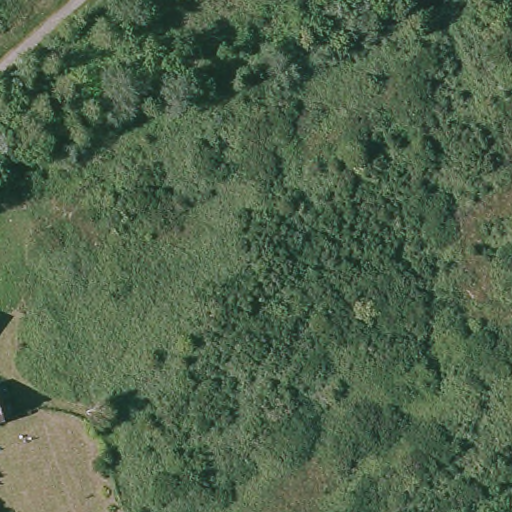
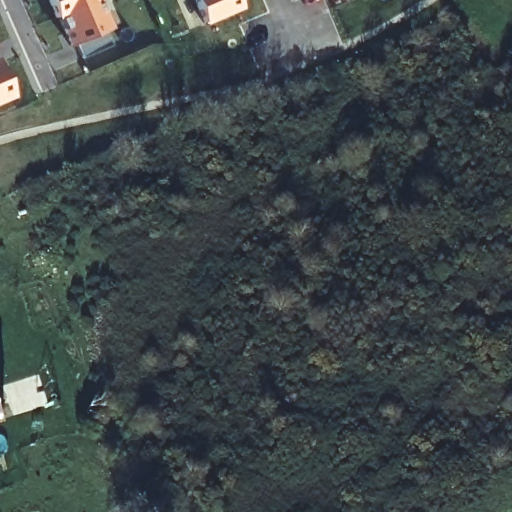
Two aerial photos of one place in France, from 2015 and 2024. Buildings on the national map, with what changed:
new [(110,27),(105,29),(111,44),(82,56),(75,42),(70,44),(58,15),(55,15),(49,0),(98,0),(110,27)]
new [(239,5),(203,21),(194,0),(237,0),(239,5)]
new [(13,93),(0,99),(0,62),(13,93)]
unchanged [(2,417),(0,418),(0,411),(2,417)]

